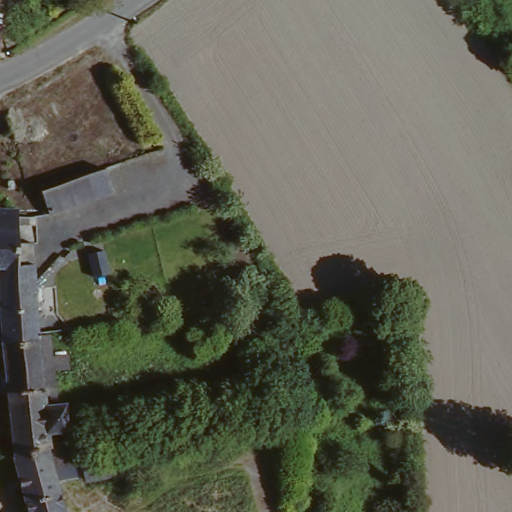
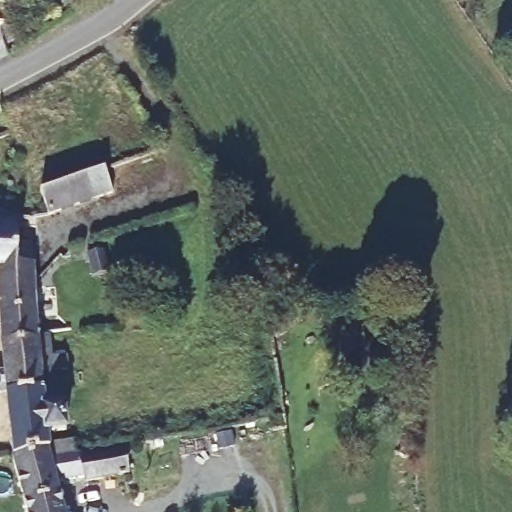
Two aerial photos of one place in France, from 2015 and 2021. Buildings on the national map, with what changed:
unchanged [(109,170),(115,194),(52,212),(46,191),(109,170)]
unchanged [(69,373),(64,374),(53,375),(57,410),(68,408),(64,409),(67,435),(68,440),(51,442),(53,456),(48,456),(40,457),(16,460),(10,397),(1,397),(0,392),(0,376),(10,375),(2,270),(0,270),(0,207),(15,208),(19,268),(34,268),(40,338),(49,338),(51,358),(63,358),(67,358),(69,373)]
unchanged [(40,457),(48,456),(53,456),(55,466),(86,460),(126,451),(131,475),(125,476),(91,485),(89,477),(60,484),(67,512),(29,512),(16,460),(40,457)]

